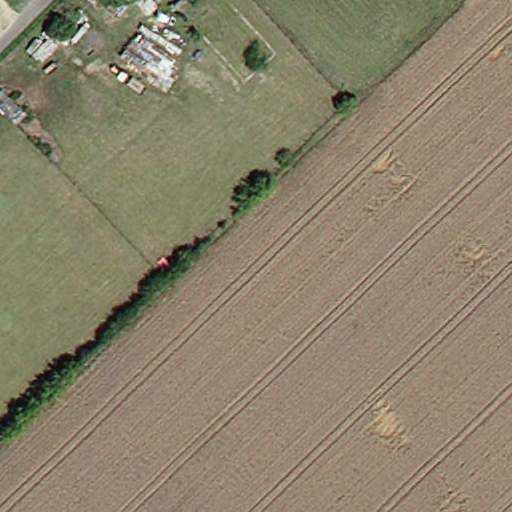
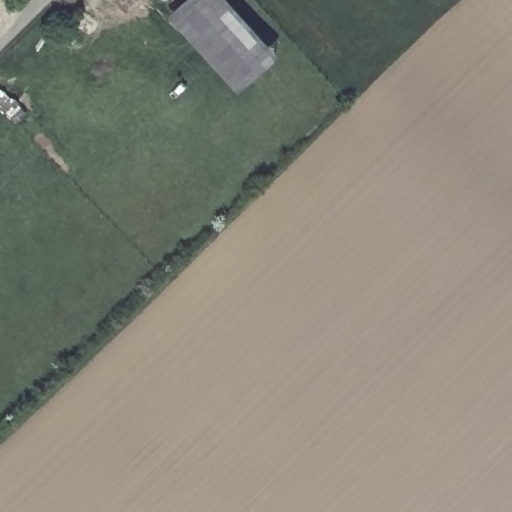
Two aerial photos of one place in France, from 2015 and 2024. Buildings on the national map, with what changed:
new [(186,0),(218,0),(271,57),(242,85),(174,11),(186,0)]

